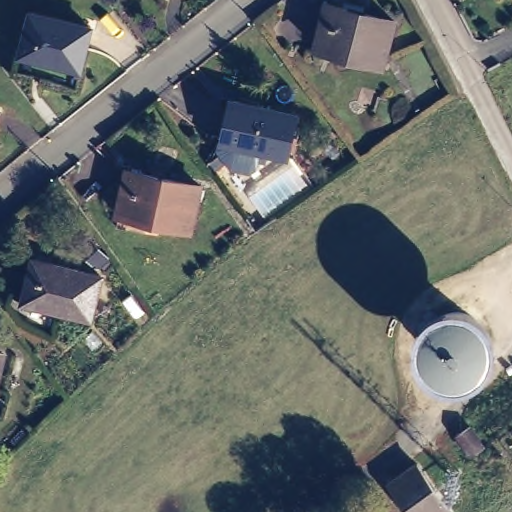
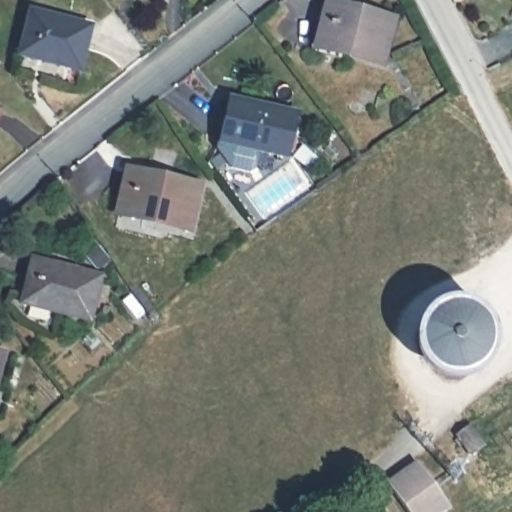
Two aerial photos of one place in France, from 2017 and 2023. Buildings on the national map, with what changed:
unchanged [(345,0),(399,11),(388,54),(321,40),(330,0),(345,0)]
unchanged [(33,6),(89,23),(77,66),(22,47),(33,6)]
unchanged [(237,102),(299,113),(290,153),(229,141),(237,102)]
unchanged [(131,167),(204,182),(193,224),(121,210),(131,167)]
unchanged [(35,254),(97,270),(89,312),(26,296),(35,254)]
unchanged [(0,360),(0,350),(2,350),(0,360)]
unchanged [(462,446),(449,428),(453,426),(461,420),(474,438),(465,444),(462,446)]
unchanged [(422,458),(454,501),(439,512),(415,512),(391,481),(422,458)]

